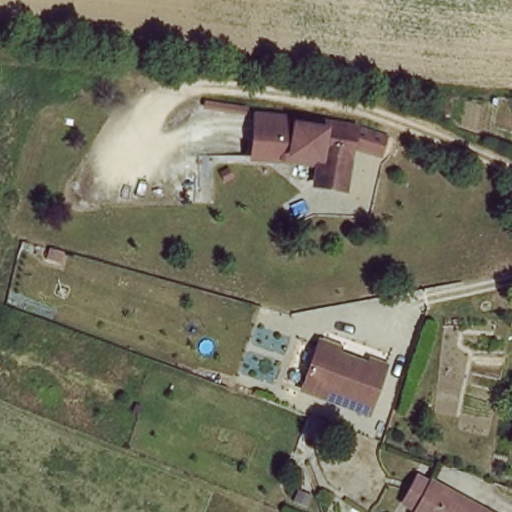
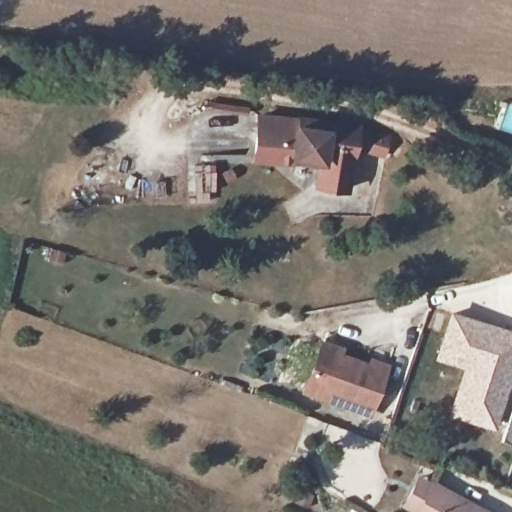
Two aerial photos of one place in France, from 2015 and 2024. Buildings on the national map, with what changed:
unchanged [(266,114),(296,115),(327,118),(355,122),(387,130),(383,147),(353,139),(347,183),(319,180),(321,160),(291,156),(276,156),(260,155),(254,155),(255,134),(256,113),(266,114)]
new [(512,375),(495,428),(447,412),(462,367),(432,357),(449,309),(512,331),(512,375)]
unchanged [(370,356),(386,362),(369,410),(301,385),(318,342),(319,338),(340,345),(339,350),(368,361),(370,356)]
unchanged [(462,500),(486,512),(408,512),(400,508),(416,477),(429,484),(455,496),(462,500)]

